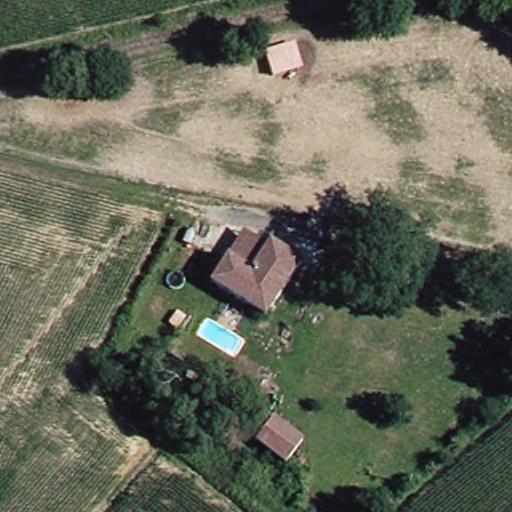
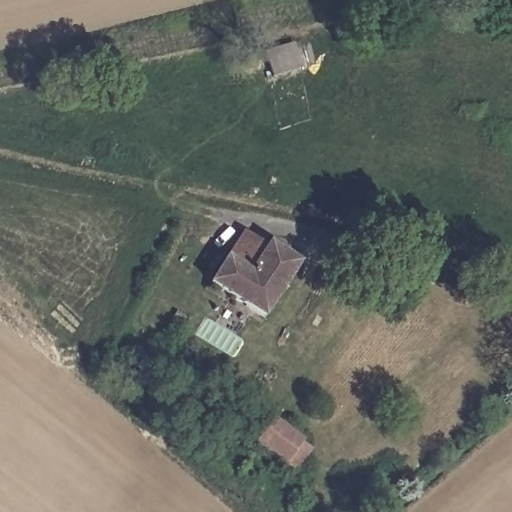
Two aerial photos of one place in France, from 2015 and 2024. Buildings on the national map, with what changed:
unchanged [(261,318),(207,285),(240,235),(267,249),(268,246),(301,263),(261,318)]
unchanged [(239,456),(265,420),(294,441),(269,477),(239,456)]

